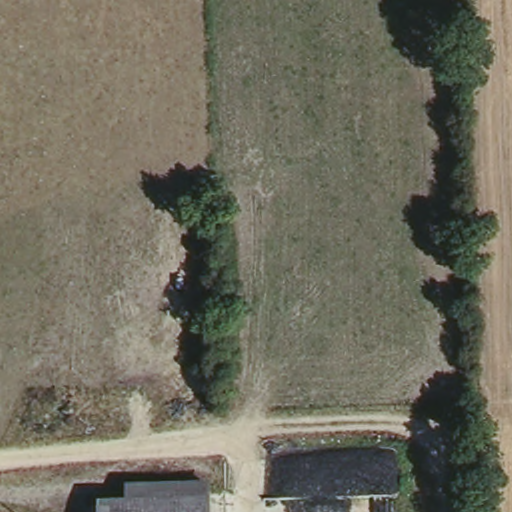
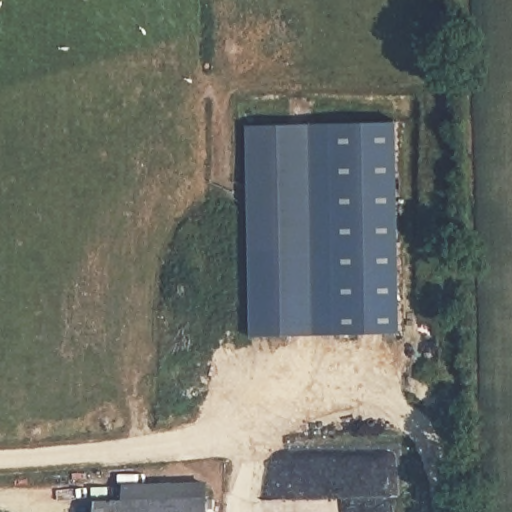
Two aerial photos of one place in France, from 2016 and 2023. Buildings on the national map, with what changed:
new [(399,125),(402,336),(253,339),(250,128),(399,125)]
unchanged [(100,510),(130,508),(130,495),(203,491),(204,512),(101,512),(100,510)]

